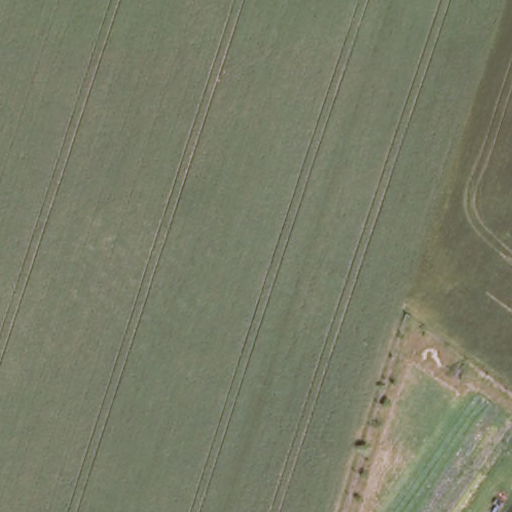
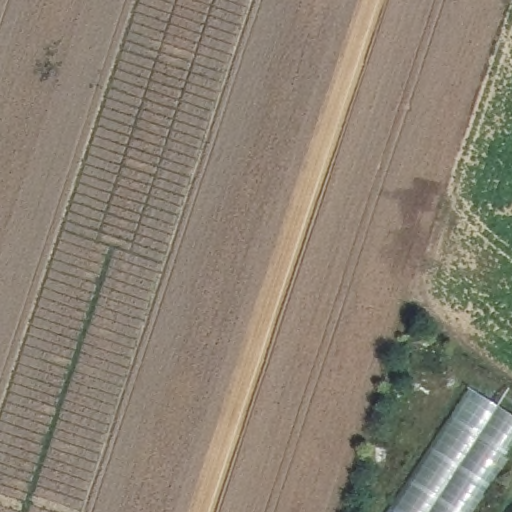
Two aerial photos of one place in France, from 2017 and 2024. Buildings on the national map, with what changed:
new [(470,388),(512,414),(512,454),(474,512),(389,512),(470,388)]

